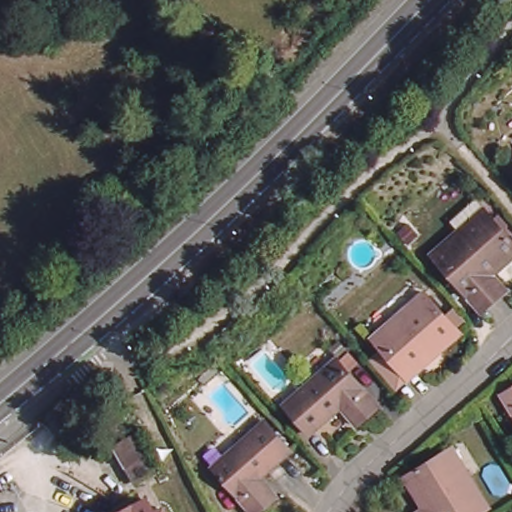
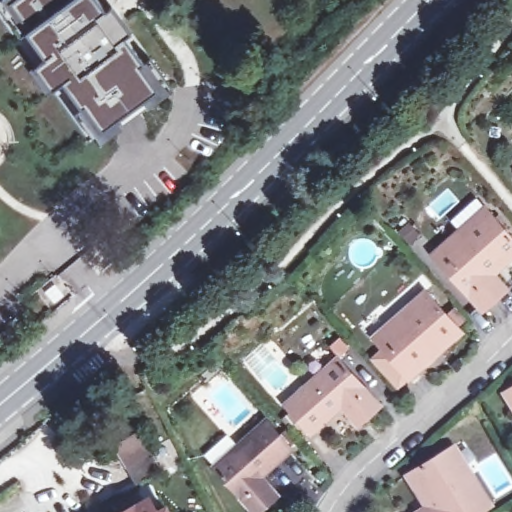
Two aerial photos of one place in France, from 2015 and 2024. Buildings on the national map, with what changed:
new [(0,18),(0,2),(3,0),(99,0),(117,25),(124,36),(143,64),(140,66),(157,91),(86,141),(0,18)]
unchanged [(485,207),(497,222),(512,239),(512,270),(500,280),(512,294),(512,296),(488,318),(439,261),(467,237),(459,229),(485,207)]
new [(55,302),(47,292),(55,285),(63,295),(55,302)]
unchanged [(372,362),(385,352),(374,340),(427,294),(464,336),(443,354),(412,382),(400,391),(372,362)]
unchanged [(312,430),(287,402),(340,356),(381,405),(360,423),(343,404),(312,430)]
unchanged [(218,373),(202,387),(195,380),(212,365),(218,373)]
unchanged [(512,392),(512,407),(505,396),(512,392)]
unchanged [(258,512),(220,467),(272,422),(297,451),(267,478),(284,497),(267,512),(258,512)]
unchanged [(130,432),(152,472),(130,484),(108,445),(130,432)]
unchanged [(428,512),(431,510),(413,479),(453,455),(461,450),(478,478),(497,508),(490,512),(428,512)]
unchanged [(181,512),(171,512),(155,480),(162,475),(181,512)]
unchanged [(150,512),(117,512),(142,498),(150,512)]

